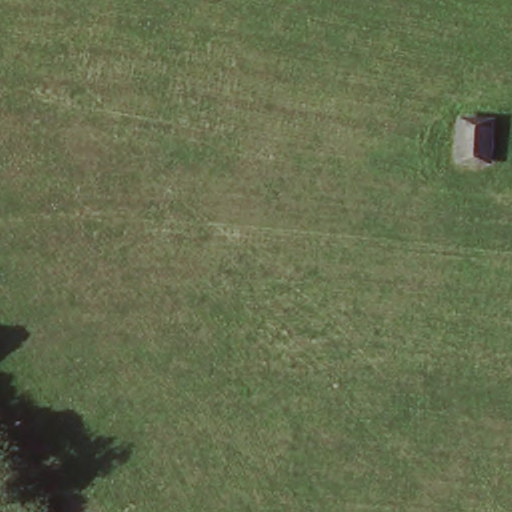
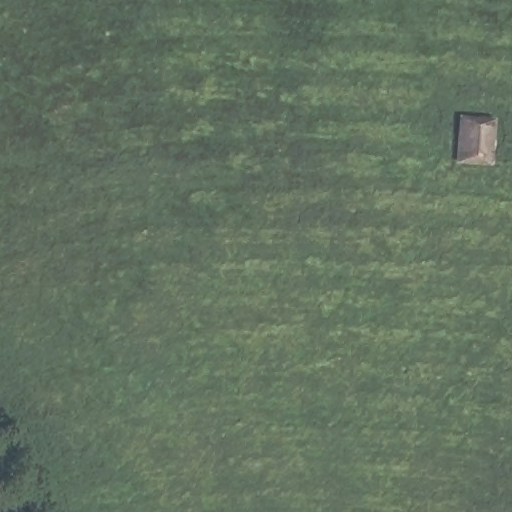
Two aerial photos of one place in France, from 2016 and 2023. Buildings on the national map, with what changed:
unchanged [(496,122),(493,154),(459,149),(462,117),(496,122)]

